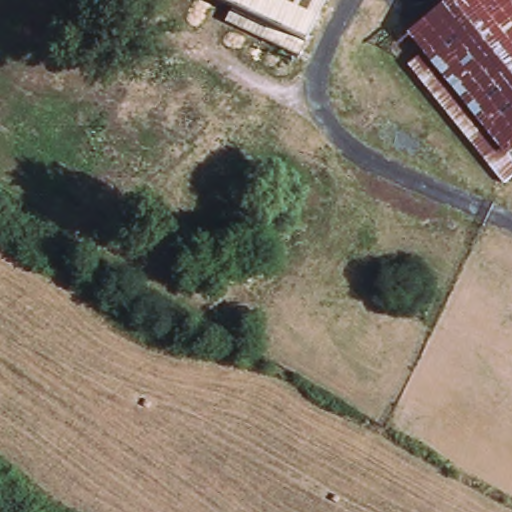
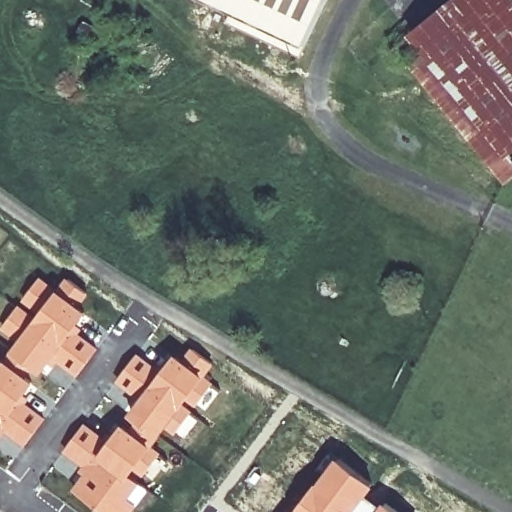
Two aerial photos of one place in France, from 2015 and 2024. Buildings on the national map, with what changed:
unchanged [(300,57),(226,23),(233,8),(216,0),(327,0),(300,57)]
unchanged [(508,154),(512,159),(512,177),(505,184),(410,67),(426,54),(411,35),(454,0),(512,0),(512,151),(508,154)]
new [(14,343),(0,332),(0,327),(20,301),(40,275),(57,287),(66,275),(90,295),(81,306),(88,312),(76,329),(52,362),(35,383),(23,399),(47,418),(22,448),(1,431),(0,432),(0,353),(4,357),(14,343)]
new [(76,329),(99,347),(73,379),(52,362),(76,329)]
new [(126,416),(137,399),(160,369),(175,352),(182,357),(192,345),(215,365),(205,376),(213,383),(175,434),(167,428),(153,446),(122,421),(126,416)]
new [(137,351),(160,369),(137,399),(113,381),(137,351)]
new [(108,439),(122,421),(153,446),(161,453),(140,482),(149,491),(132,512),(100,512),(70,486),(75,480),(72,478),(70,481),(50,465),(84,421),(108,439)]
new [(375,486),(368,494),(353,512),(293,512),(336,455),(375,486)]
new [(381,503),(383,501),(398,512),(353,512),(368,494),(381,503)]

